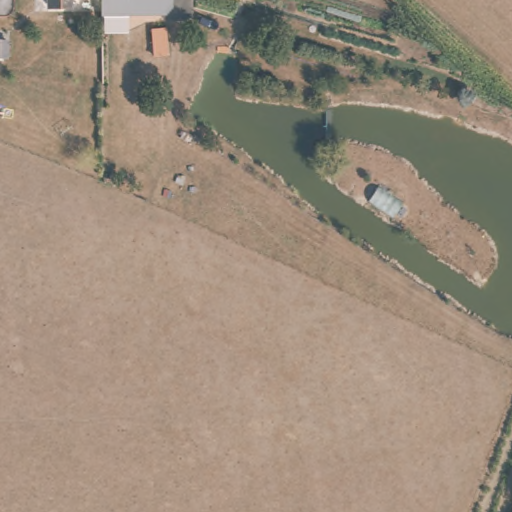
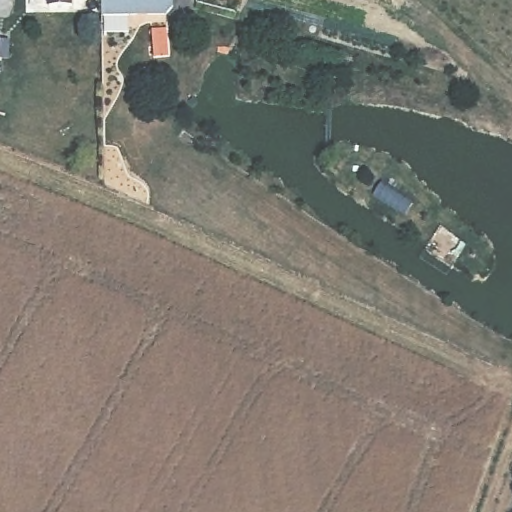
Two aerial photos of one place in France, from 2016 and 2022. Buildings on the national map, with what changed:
unchanged [(71,2),(49,1),(49,0),(71,0),(71,2)]
unchanged [(171,6),(163,14),(100,15),(100,4),(100,0),(171,0),(171,6)]

